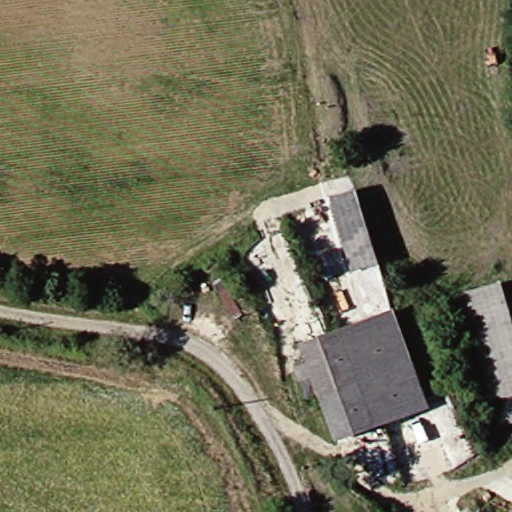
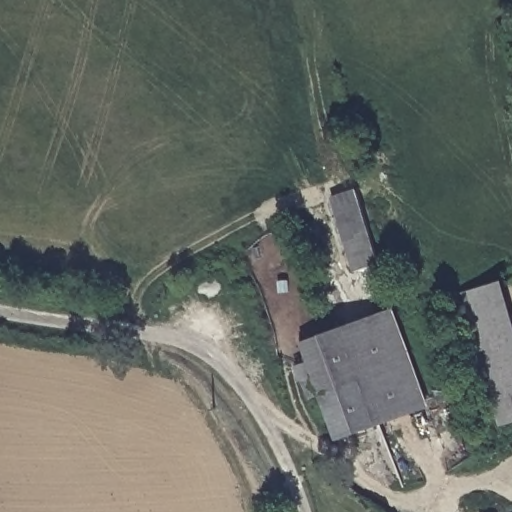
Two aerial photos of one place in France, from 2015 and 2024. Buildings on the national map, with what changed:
unchanged [(378,259),(346,270),(321,203),(355,193),(378,259)]
unchanged [(511,277),(512,283),(512,421),(502,423),(462,288),(511,277)]
unchanged [(417,401),(318,442),(295,380),(281,385),(275,369),(289,362),(283,345),(385,310),(417,401)]

